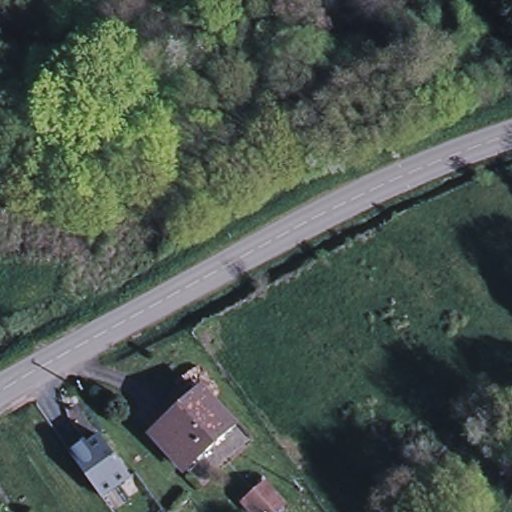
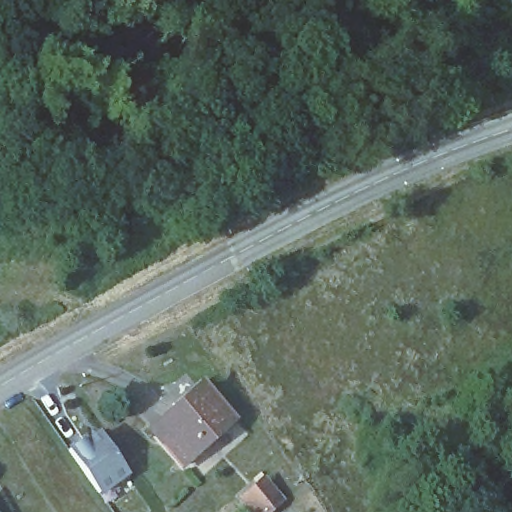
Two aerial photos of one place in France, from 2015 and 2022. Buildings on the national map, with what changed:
unchanged [(152,431),(199,389),(230,424),(182,466),(152,431)]
unchanged [(96,426),(131,477),(98,498),(65,450),(96,426)]

